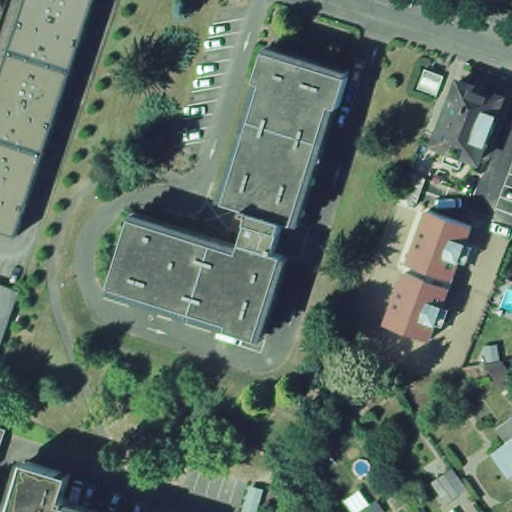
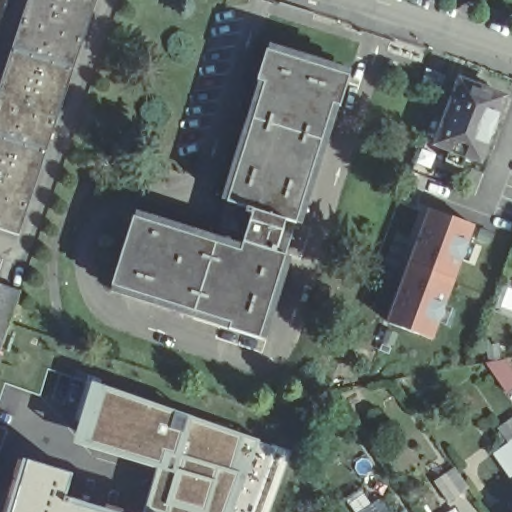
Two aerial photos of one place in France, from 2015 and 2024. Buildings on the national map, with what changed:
unchanged [(11,233),(13,234),(12,236),(10,236),(0,233),(0,67),(22,0),(88,0),(11,233)]
unchanged [(344,75),(335,105),(327,103),(289,222),(278,220),(267,251),(280,254),(253,338),(222,328),(225,322),(107,285),(128,215),(237,250),(247,214),(241,211),(242,207),(222,201),(258,82),(250,80),(261,49),(344,75)]
unchanged [(427,69),(445,76),(438,95),(420,87),(426,69),(427,69)]
unchanged [(445,159),(449,149),(435,143),(459,80),(503,96),(494,120),(495,126),(493,130),(490,134),(488,135),(479,160),(465,155),(461,166),(445,159)]
unchanged [(423,179),(413,204),(401,200),(410,174),(423,179)]
demolished [(512,226),(497,220),(507,191),(512,193),(512,226)]
unchanged [(455,280),(408,262),(428,209),(474,226),(455,280)]
unchanged [(432,340),(385,323),(405,270),(452,286),(432,340)]
unchanged [(21,295),(17,307),(12,320),(10,327),(8,332),(7,337),(3,345),(0,356),(0,288),(21,295)]
unchanged [(512,388),(505,393),(484,362),(500,360),(512,376),(512,388)]
new [(193,415),(265,441),(238,512),(141,512),(152,467),(70,443),(92,380),(193,415)]
unchanged [(12,435),(0,470),(0,430),(12,435)]
unchanged [(512,441),(512,467),(499,450),(512,441)]
unchanged [(60,497),(62,499),(62,503),(92,512),(8,512),(23,460),(67,473),(60,497)]
unchanged [(448,502),(437,483),(460,466),(472,490),(448,502)]
demolished [(387,512),(379,512),(385,508),(387,512)]

